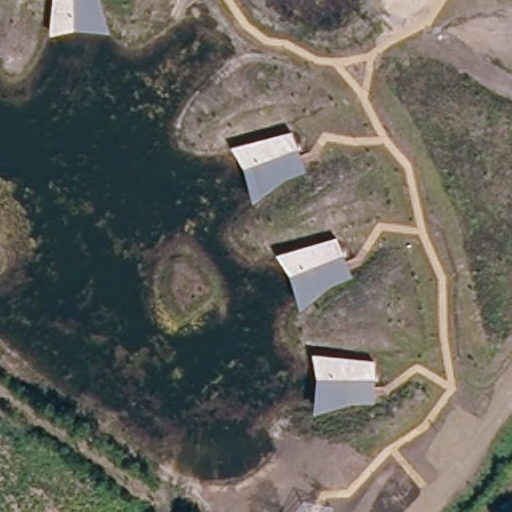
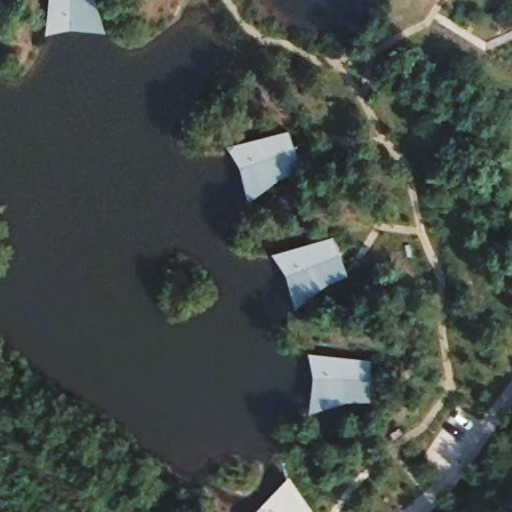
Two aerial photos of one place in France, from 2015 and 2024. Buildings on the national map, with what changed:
unchanged [(109,31),(74,28),(48,35),(51,0),(96,0),(109,31)]
unchanged [(291,130),(306,171),(281,180),(253,204),(245,166),(232,149),(291,130)]
unchanged [(352,275),(328,285),(299,311),(291,272),(277,254),(337,236),(352,275)]
unchanged [(374,402),(354,400),(313,412),(317,380),(313,353),(374,360),(374,402)]
new [(314,512),(257,512),(291,477),(314,512)]

